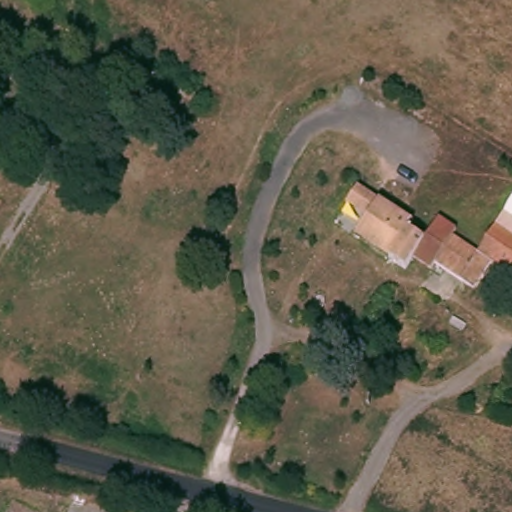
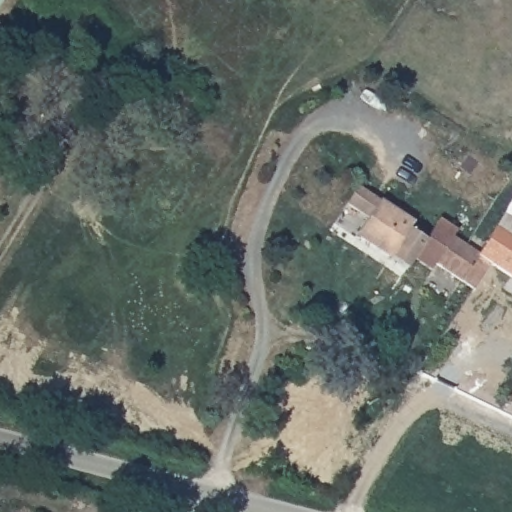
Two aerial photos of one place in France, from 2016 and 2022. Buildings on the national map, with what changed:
unchanged [(418,250),(410,262),(414,265),(407,272),(353,233),(379,194),(416,222),(410,230),(424,241),(418,250)]
unchanged [(457,233),(452,241),(475,256),(492,230),(512,245),(512,284),(485,265),(468,291),(433,265),(427,274),(414,265),(410,262),(424,241),(438,221),(457,233)]

